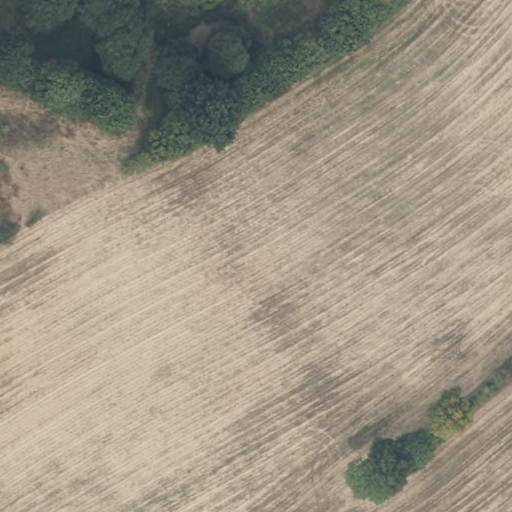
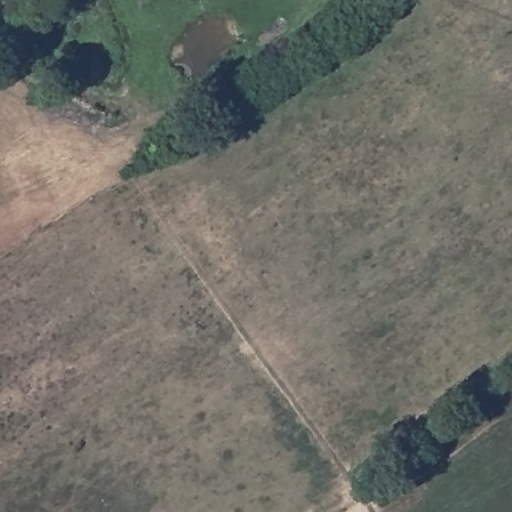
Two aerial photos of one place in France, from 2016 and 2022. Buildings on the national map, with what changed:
unchanged [(331,0),(336,0),(333,3),(331,0)]

